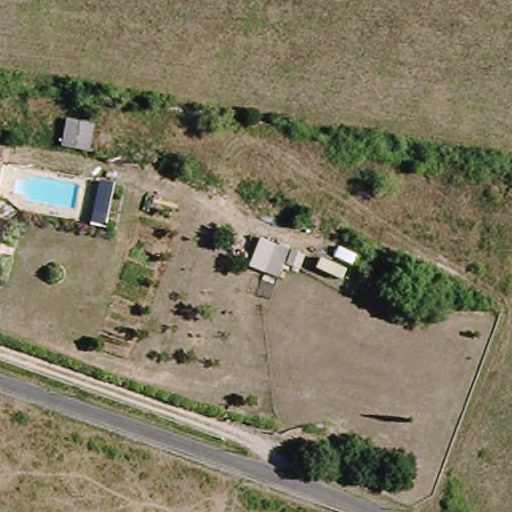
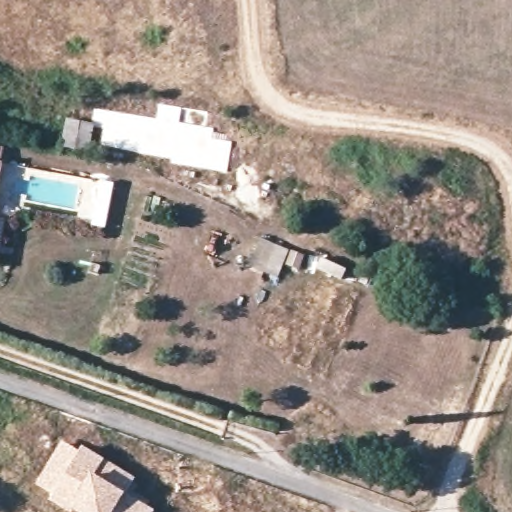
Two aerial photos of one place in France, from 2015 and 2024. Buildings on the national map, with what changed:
new [(156,119),(158,105),(182,107),(179,123),(214,128),(213,139),(232,142),(227,173),(170,164),(170,159),(101,147),(103,128),(94,126),(94,122),(92,122),(94,109),(156,119)]
new [(65,119),(94,122),(90,151),(61,148),(65,119)]
unchanged [(4,160),(0,177),(0,160),(4,160)]
new [(105,228),(92,225),(101,180),(114,182),(105,228)]
new [(132,478),(123,493),(151,511),(150,512),(84,512),(75,506),(72,511),(52,499),(67,474),(83,446),(101,456),(132,478)]

